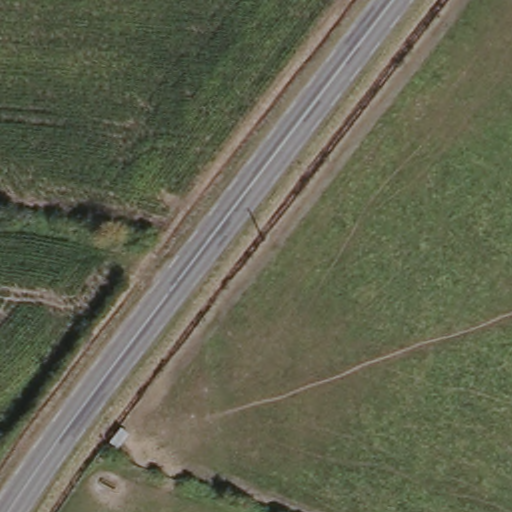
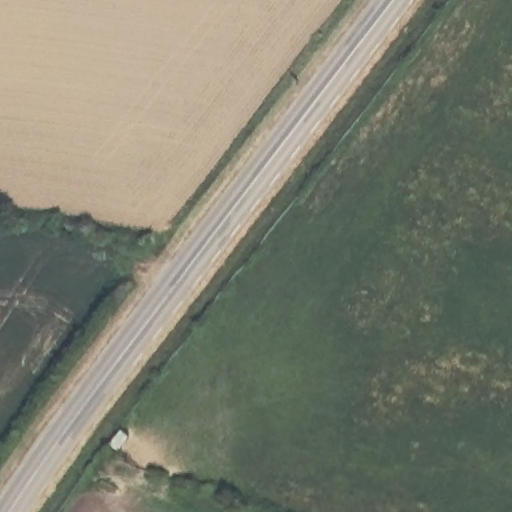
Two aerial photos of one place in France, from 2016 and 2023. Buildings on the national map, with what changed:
unchanged [(130,427),(138,433),(127,448),(119,442),(130,427)]

